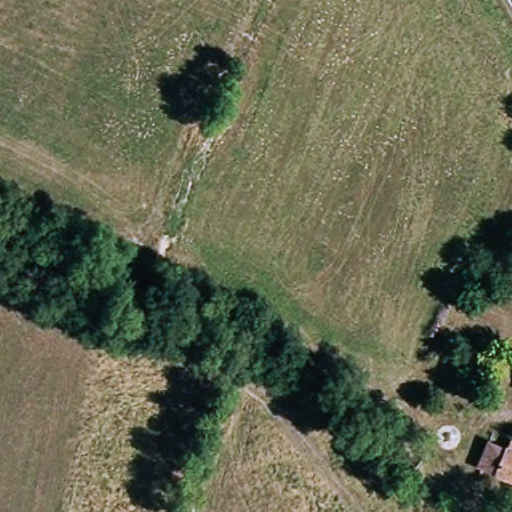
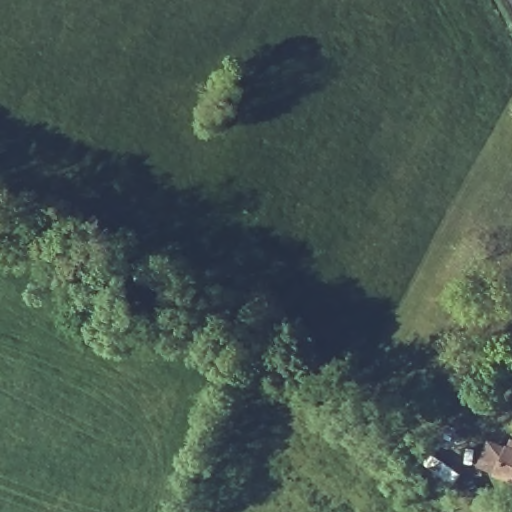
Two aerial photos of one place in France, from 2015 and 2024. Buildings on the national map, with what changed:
unchanged [(507,440),(512,441),(512,482),(492,471),(507,440)]

